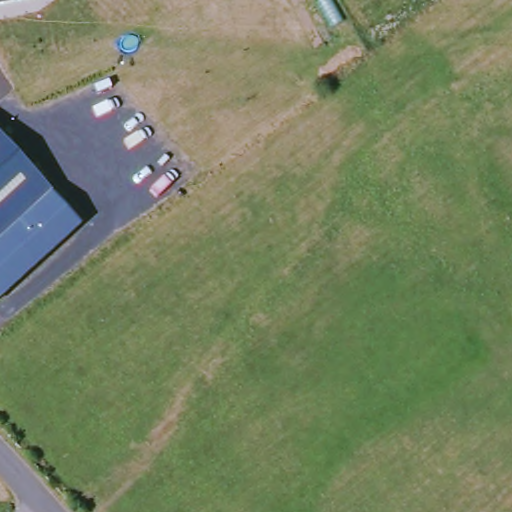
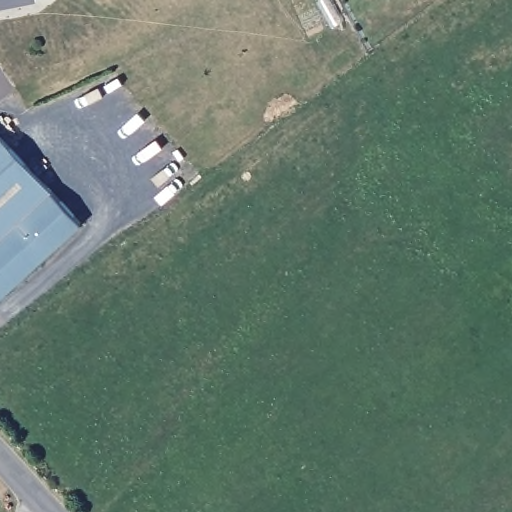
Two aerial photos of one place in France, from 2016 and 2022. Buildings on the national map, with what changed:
unchanged [(0,0),(29,0),(0,6),(0,0)]
unchanged [(0,244),(0,134),(55,195),(0,244)]
unchanged [(84,226),(0,302),(0,244),(55,195),(84,226)]

